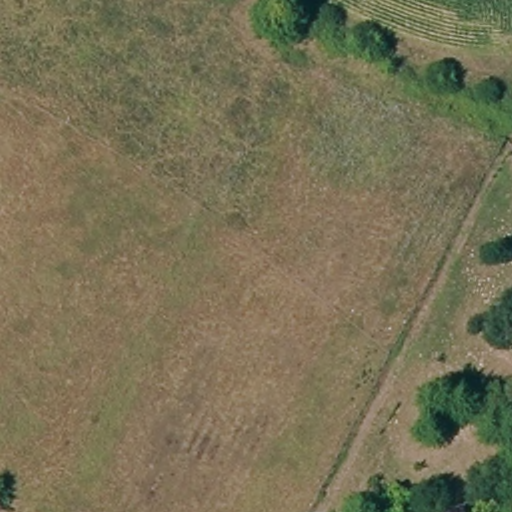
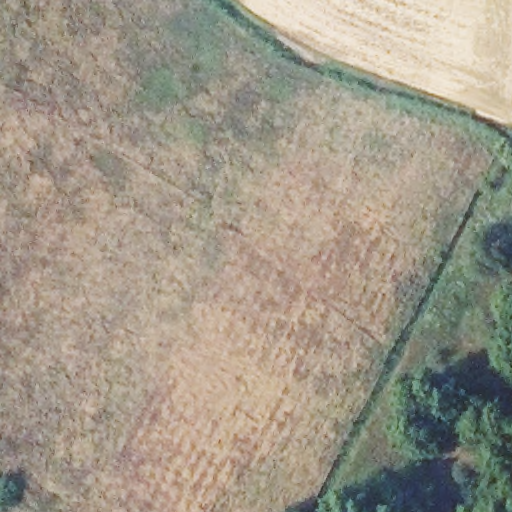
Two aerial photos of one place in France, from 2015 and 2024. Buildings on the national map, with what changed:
[]

